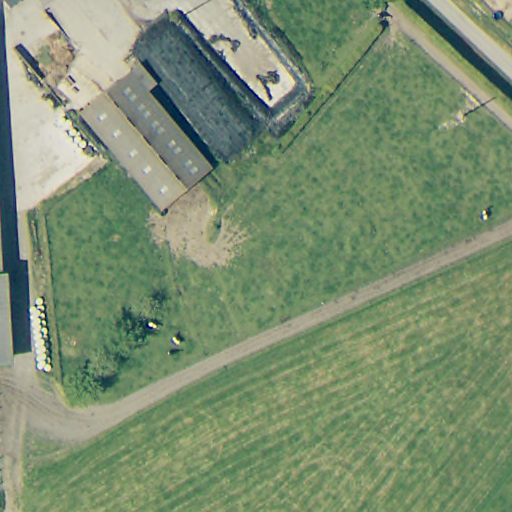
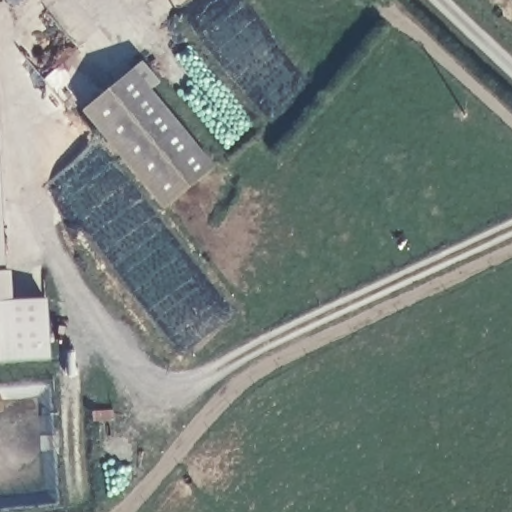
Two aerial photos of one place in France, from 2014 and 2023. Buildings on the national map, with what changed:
unchanged [(20,5),(15,0),(25,0),(20,5)]
unchanged [(214,167),(164,208),(84,111),(134,70),(214,167)]
unchanged [(9,271),(13,361),(0,361),(0,202),(4,271),(9,271)]
new [(10,300),(48,297),(52,359),(13,361),(10,300)]

